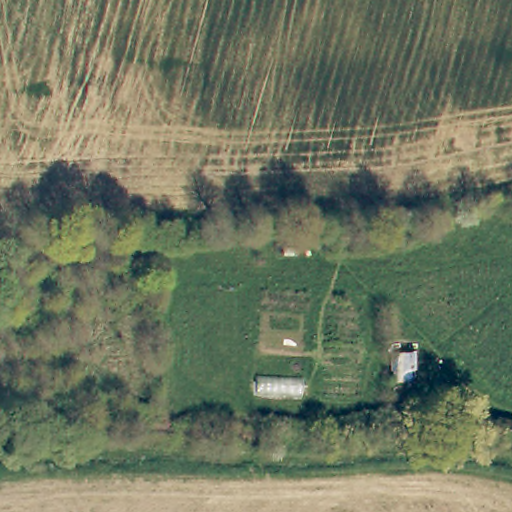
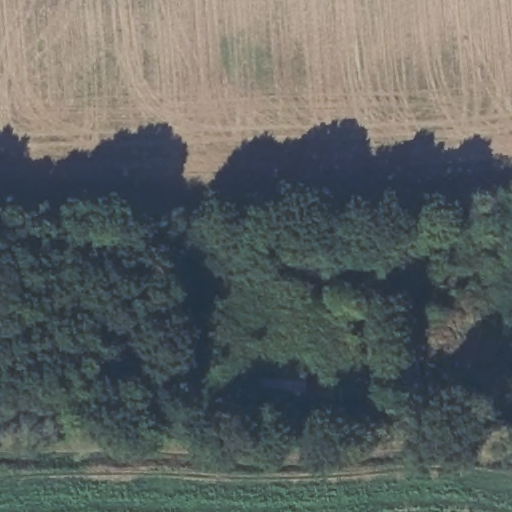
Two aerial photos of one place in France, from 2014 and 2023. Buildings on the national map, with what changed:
unchanged [(497,427),(512,433),(507,447),(491,441),(497,427)]

